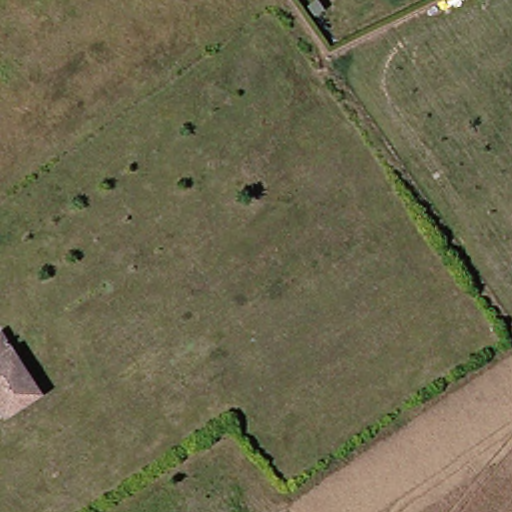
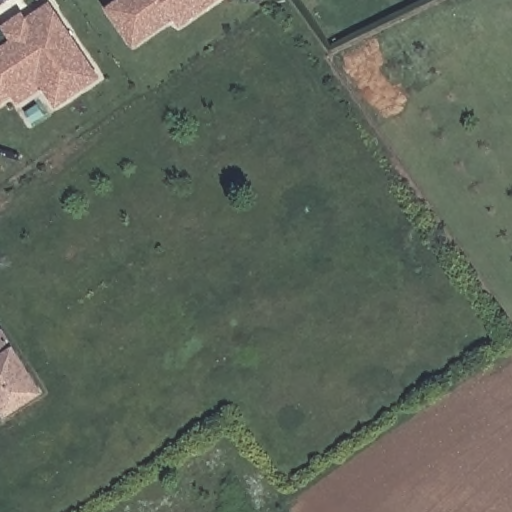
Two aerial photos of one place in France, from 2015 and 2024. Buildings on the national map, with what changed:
new [(172,17),(133,45),(107,8),(119,0),(215,0),(197,12),(178,25),(172,17)]
new [(12,94),(0,102),(0,49),(12,40),(2,26),(21,14),(25,19),(49,4),(54,12),(79,49),(97,77),(81,88),(55,105),(42,85),(17,102),(12,94)]
unchanged [(44,394),(9,421),(5,418),(0,411),(0,339),(44,394)]

